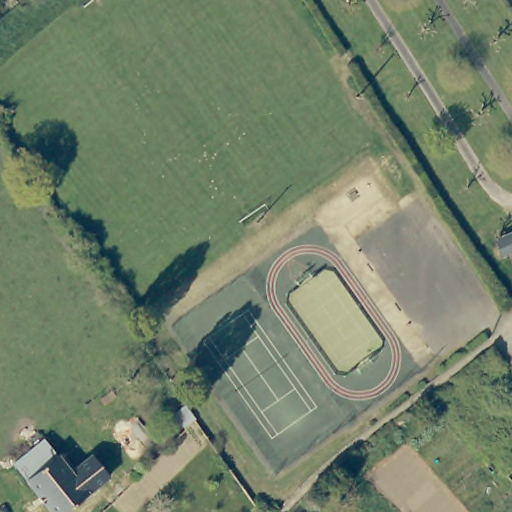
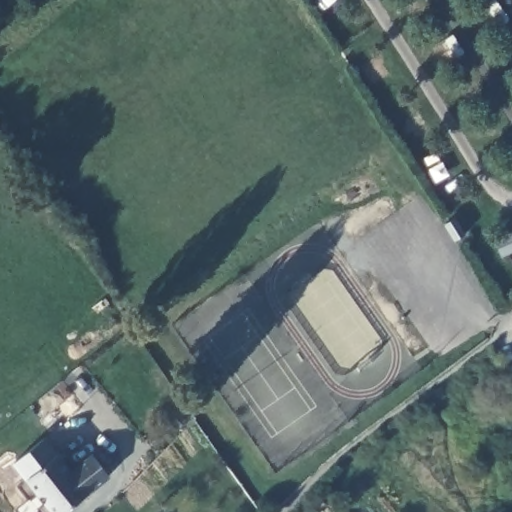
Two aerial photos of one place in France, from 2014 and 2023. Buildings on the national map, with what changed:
unchanged [(93,450),(114,477),(69,512),(47,512),(11,466),(46,437),(71,468),(93,450)]

